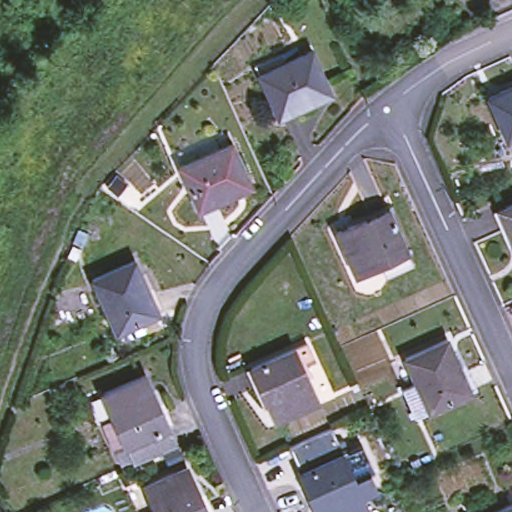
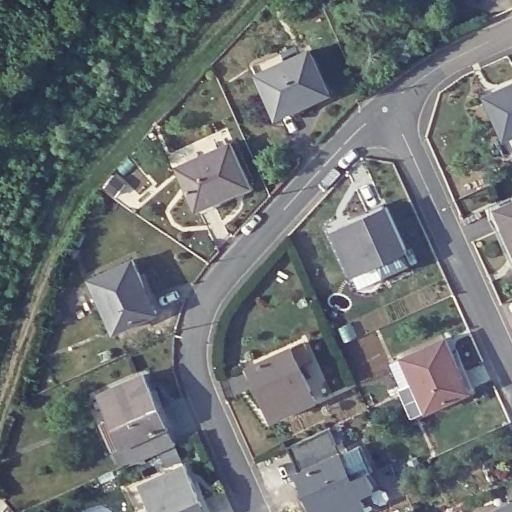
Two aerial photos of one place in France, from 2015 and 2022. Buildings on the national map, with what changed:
unchanged [(330,93),(278,116),(255,65),(282,53),(286,62),(310,51),(330,93)]
unchanged [(505,138),(487,96),(512,86),(512,135),(505,138)]
unchanged [(251,186),(199,210),(180,167),(232,144),(251,186)]
unchanged [(498,210),(512,204),(512,240),(498,210)]
unchanged [(385,274),(380,262),(355,274),(335,232),(386,208),(411,262),(385,274)]
unchanged [(158,313),(116,332),(93,280),(135,261),(158,313)]
unchanged [(408,386),(420,381),(410,357),(451,338),(476,390),(433,410),(422,415),(408,386)]
unchanged [(310,360),(296,365),(312,400),(270,419),(245,366),(300,340),(310,360)]
unchanged [(117,452),(104,425),(115,420),(103,395),(145,376),(170,428),(177,444),(136,461),(125,467),(117,452)]
unchanged [(331,436),(337,449),(344,451),(349,462),(362,455),(375,482),(370,484),(376,498),(360,505),(342,466),(301,485),(288,456),(331,436)]
unchanged [(155,506),(144,482),(186,463),(208,512),(143,512),(155,506)]
unchanged [(360,505),(364,512),(313,512),(300,485),(301,485),(342,466),(360,505)]
unchanged [(512,504),(512,512),(493,512),(512,504)]

